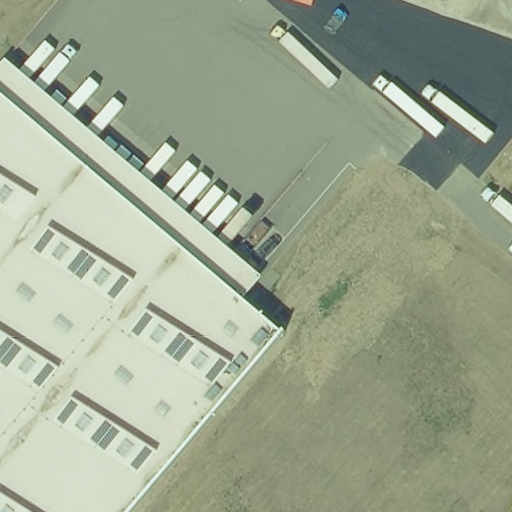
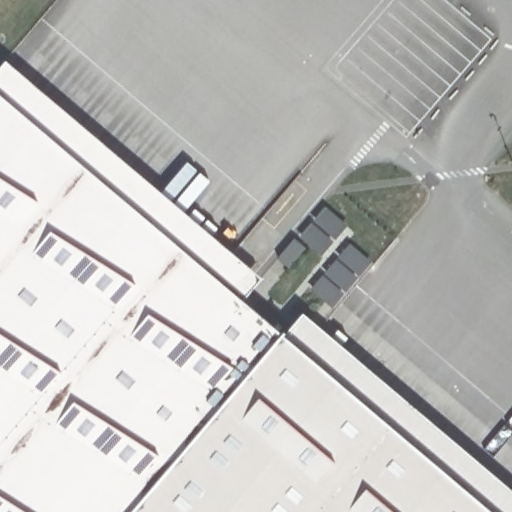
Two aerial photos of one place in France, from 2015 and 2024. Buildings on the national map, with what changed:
new [(7,60),(200,226),(262,279),(246,299),(0,92),(0,68),(7,60)]
unchanged [(246,299),(288,335),(138,512),(0,512),(0,92),(246,299)]
new [(512,493),(512,512),(138,512),(288,335),(302,313),(512,493)]

